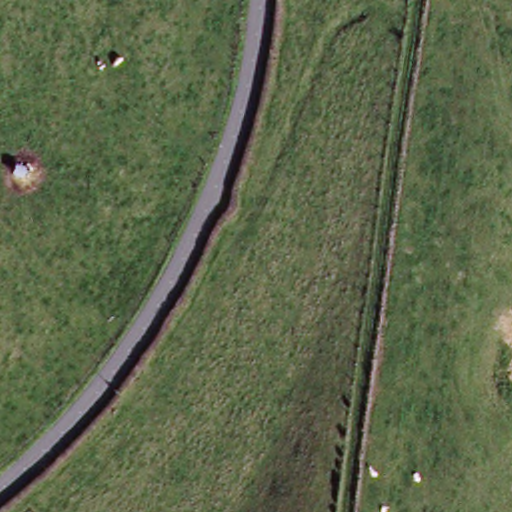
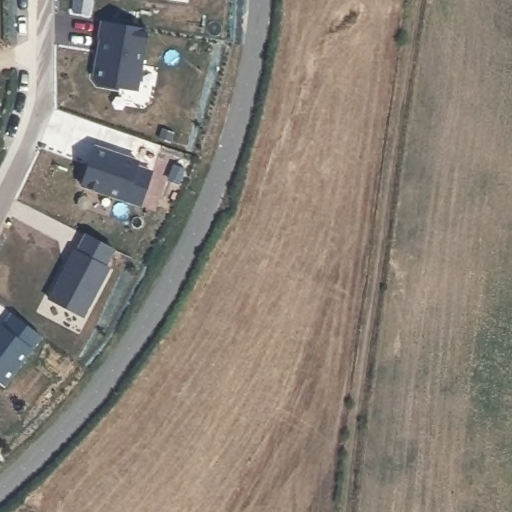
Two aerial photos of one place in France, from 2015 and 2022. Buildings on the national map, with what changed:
new [(73,15),(76,0),(101,0),(97,19),(73,15)]
new [(151,29),(140,87),(102,80),(98,74),(105,39),(103,38),(106,20),(151,29)]
new [(144,204),(128,199),(127,203),(83,189),(96,147),(140,161),(138,165),(155,170),(144,204)]
new [(85,317),(50,298),(75,249),(78,250),(87,234),(120,250),(85,317)]

